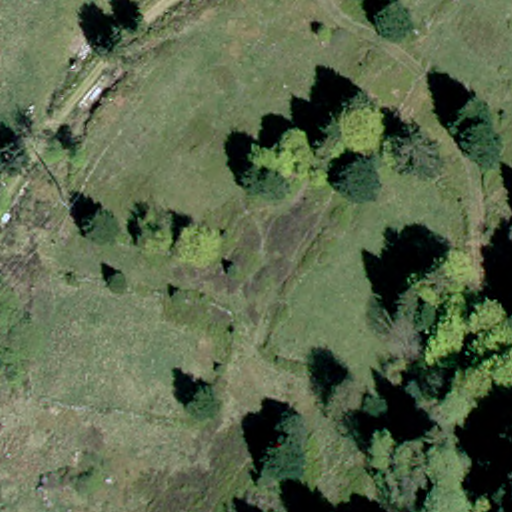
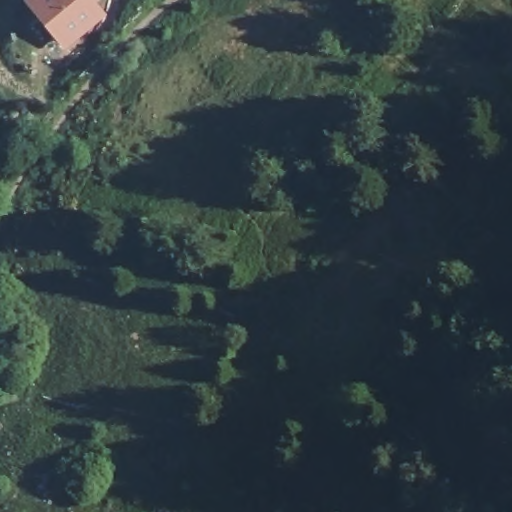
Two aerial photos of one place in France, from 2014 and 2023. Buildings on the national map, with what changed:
new [(105,15),(63,50),(24,0),(93,0),(105,15)]

